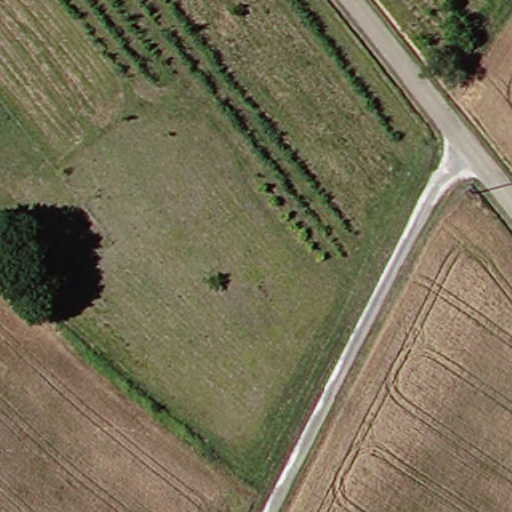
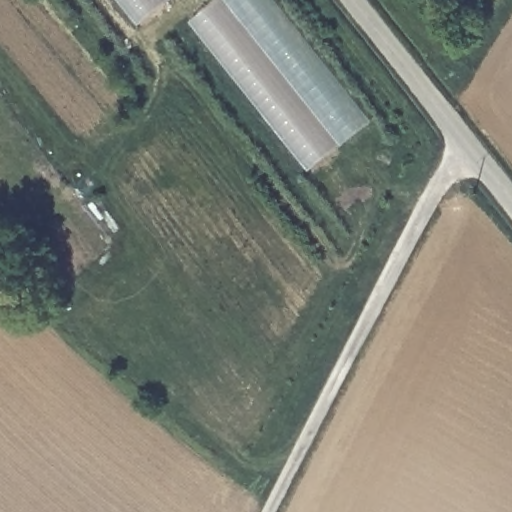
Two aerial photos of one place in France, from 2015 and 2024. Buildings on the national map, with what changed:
new [(172,0),(142,24),(123,0),(172,0)]
new [(221,0),(282,0),(376,119),(313,168),(195,21),(221,0)]

